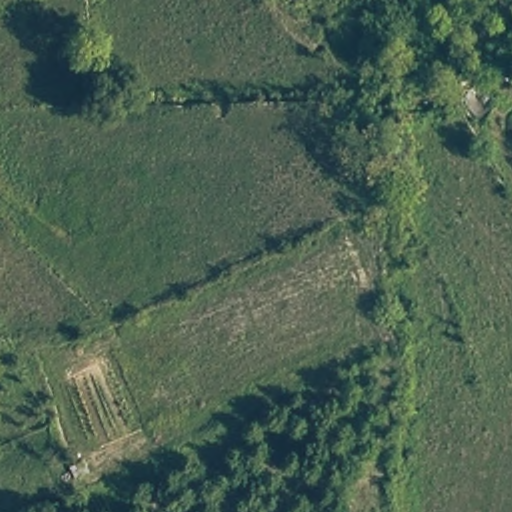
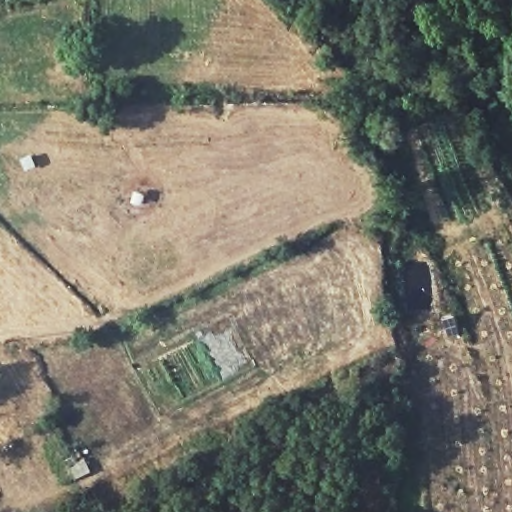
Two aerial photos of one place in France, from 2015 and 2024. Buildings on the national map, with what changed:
[]

